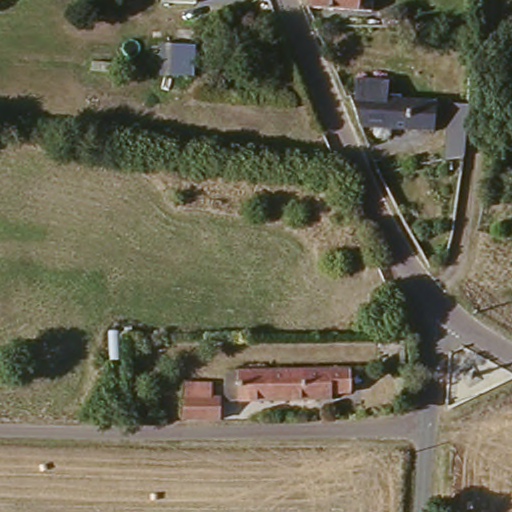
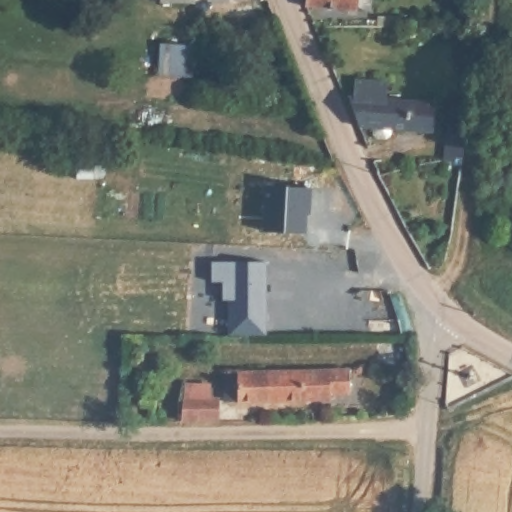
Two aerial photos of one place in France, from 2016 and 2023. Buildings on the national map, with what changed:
unchanged [(370,11),(304,7),(305,0),(371,0),(370,11)]
unchanged [(165,56),(180,57),(180,45),(200,47),(198,78),(164,76),(165,56)]
unchanged [(380,138),(370,138),(367,132),(367,128),(359,127),(348,97),(352,96),(353,80),(386,83),(386,98),(435,101),(435,133),(383,129),(384,135),(380,138)]
unchanged [(463,157),(442,157),(448,102),(469,104),(463,157)]
new [(265,333),(232,333),(236,300),(217,300),(217,263),(265,263),(265,333)]
unchanged [(272,371),(350,370),(350,389),(331,390),(331,400),(229,401),(229,371),(272,371)]
unchanged [(187,420),(186,386),(214,385),(215,399),(221,399),(222,421),(187,420)]

